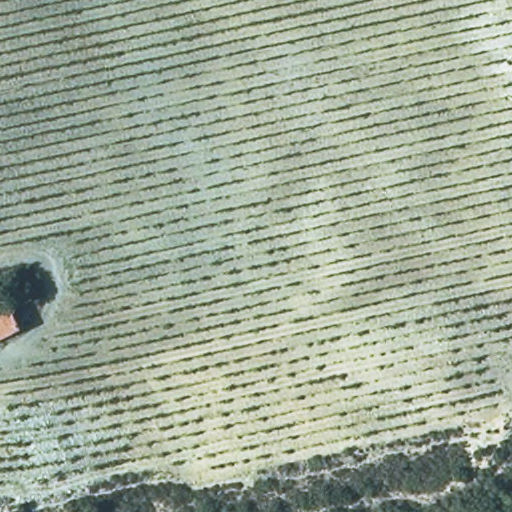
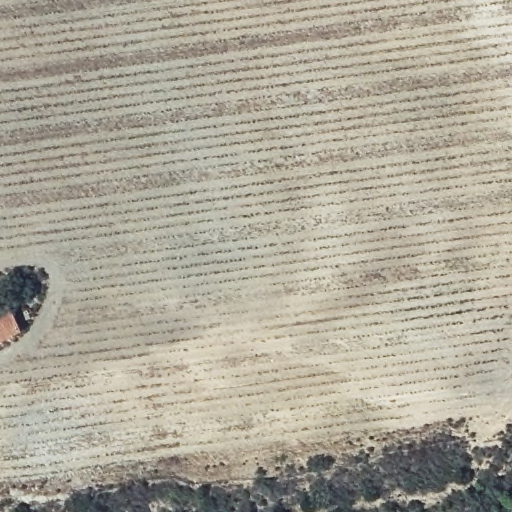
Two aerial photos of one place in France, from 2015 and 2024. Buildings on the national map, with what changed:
unchanged [(20,327),(0,337),(0,313),(10,308),(20,327)]

